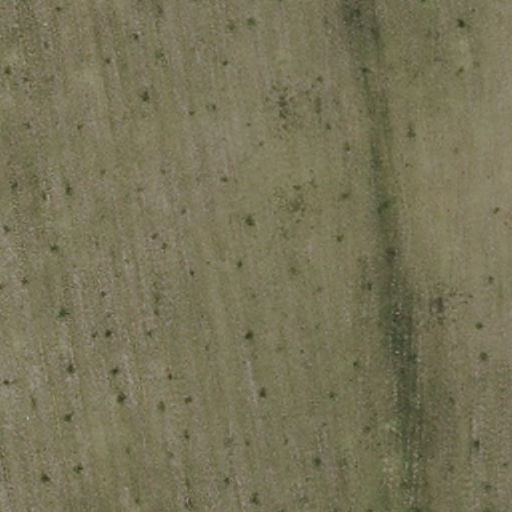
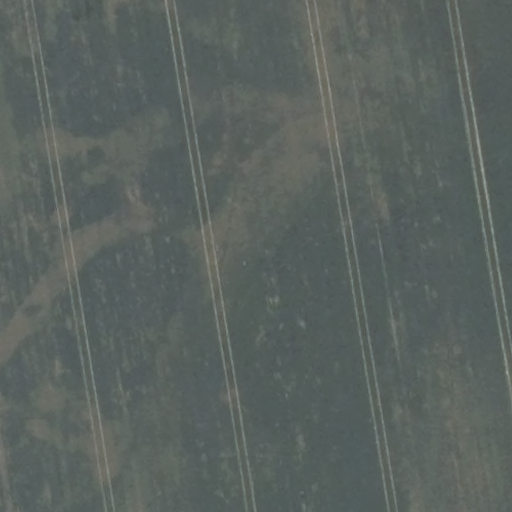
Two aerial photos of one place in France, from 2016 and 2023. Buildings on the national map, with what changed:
[]

